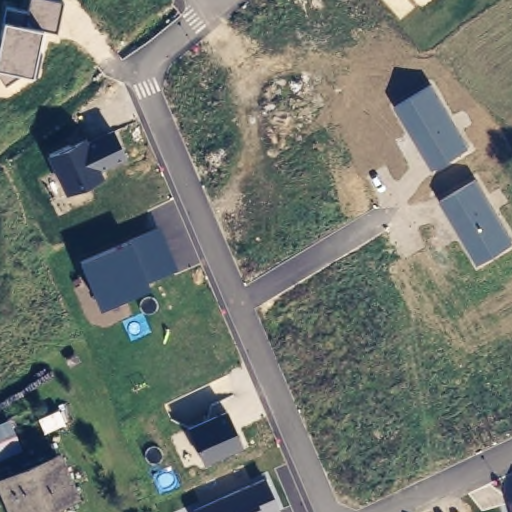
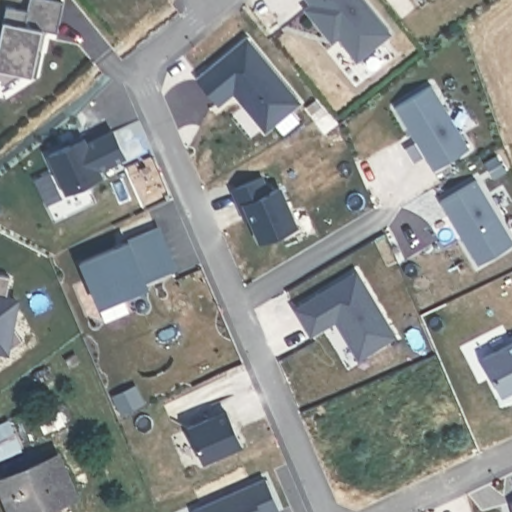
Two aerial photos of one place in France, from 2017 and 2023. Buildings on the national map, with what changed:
unchanged [(42,29),(33,74),(20,72),(5,84),(0,76),(0,30),(3,19),(6,5),(27,9),(29,0),(55,0),(63,2),(58,32),(42,29)]
new [(331,42),(304,7),(310,2),(308,0),(366,0),(393,33),(356,60),(339,37),(331,42)]
new [(264,132),(233,93),(219,103),(197,76),(248,36),(301,101),(264,132)]
unchanged [(432,169),(396,106),(432,84),(469,146),(432,169)]
unchanged [(100,169),(104,177),(66,194),(48,154),(113,125),(126,158),(100,169)]
new [(299,224),(259,241),(249,217),(244,219),(231,187),(264,175),(270,189),(282,185),(299,224)]
unchanged [(507,247),(479,266),(441,200),(476,179),(502,222),(512,238),(512,244),(507,247)]
unchanged [(146,281),(148,287),(98,308),(78,261),(128,238),(158,224),(176,268),(146,281)]
new [(335,321),(311,335),(294,307),(359,269),(398,335),(357,358),(335,321)]
new [(482,356),(512,340),(512,390),(502,395),(482,356)]
unchanged [(203,463),(200,457),(186,427),(226,409),(239,440),(243,447),(203,463)]
new [(25,452),(0,461),(0,421),(10,417),(25,452)]
unchanged [(76,500),(53,512),(9,512),(0,495),(0,488),(58,458),(76,500)]
unchanged [(191,508),(265,476),(271,488),(281,511),(278,512),(193,512),(191,508)]
unchanged [(509,500),(512,499),(512,512),(509,500)]

